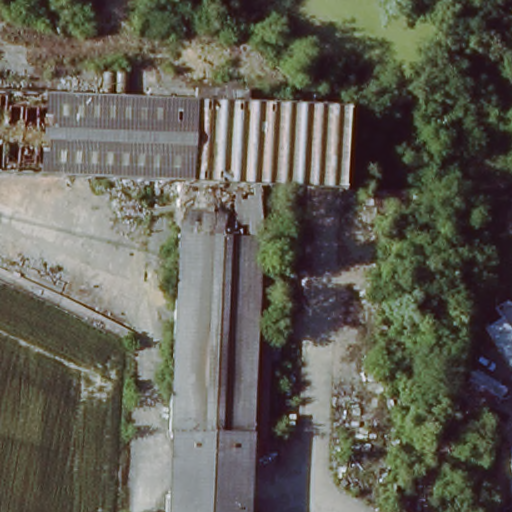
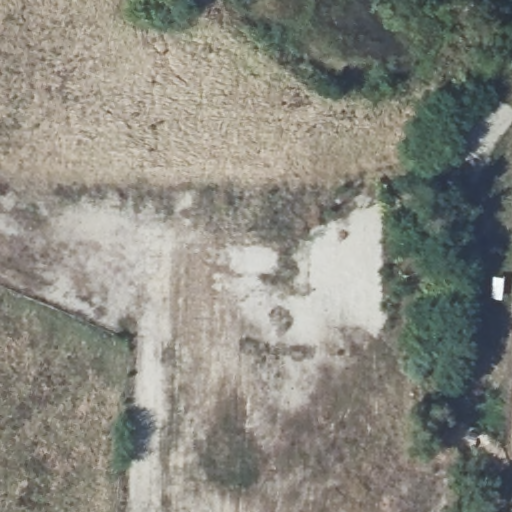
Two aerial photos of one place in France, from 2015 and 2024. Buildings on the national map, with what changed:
demolished [(54,99),(55,90),(85,92),(85,100),(139,101),(140,89),(223,91),(233,92),(233,96),(233,104),(253,105),(331,108),(331,141),(330,194),(268,192),(268,187),(253,186),(170,183),(38,179),(40,98),(54,99)]
demolished [(161,458),(163,356),(168,213),(170,183),(253,186),(268,187),(268,192),(266,216),(266,227),(250,226),(248,287),(264,287),(256,463),(241,462),(161,458)]
demolished [(241,462),(239,512),(158,512),(161,458),(241,462)]

